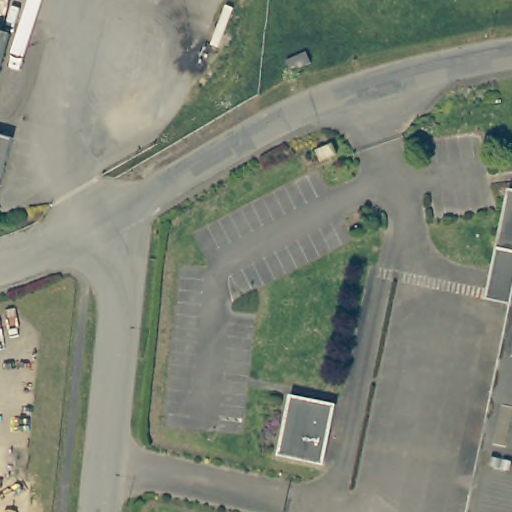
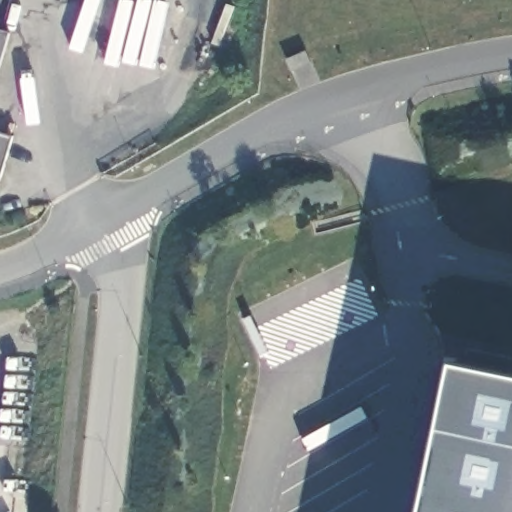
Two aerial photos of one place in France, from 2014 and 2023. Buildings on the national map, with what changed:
unchanged [(0,24),(9,27),(4,46),(0,45),(0,24)]
unchanged [(0,58),(0,45),(4,46),(0,58)]
unchanged [(310,61),(291,71),(286,60),(306,51),(310,61)]
unchanged [(0,173),(0,128),(12,132),(0,173)]
demolished [(337,154),(320,161),(315,149),(332,142),(337,154)]
demolished [(485,293),(508,182),(512,183),(512,512),(467,512),(511,299),(485,293)]
new [(430,512),(460,362),(512,373),(512,512),(430,512)]
demolished [(331,398),(319,460),(272,450),(285,388),(331,398)]

